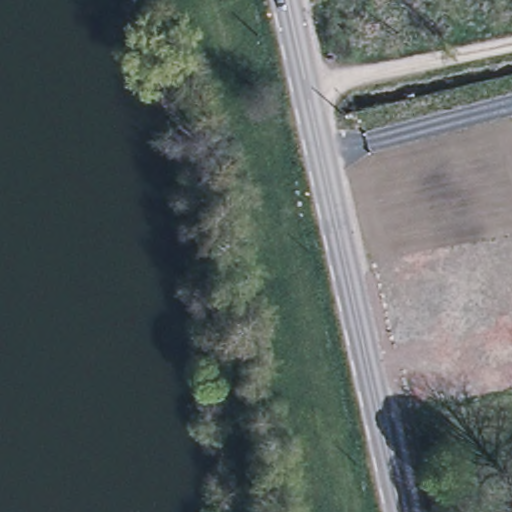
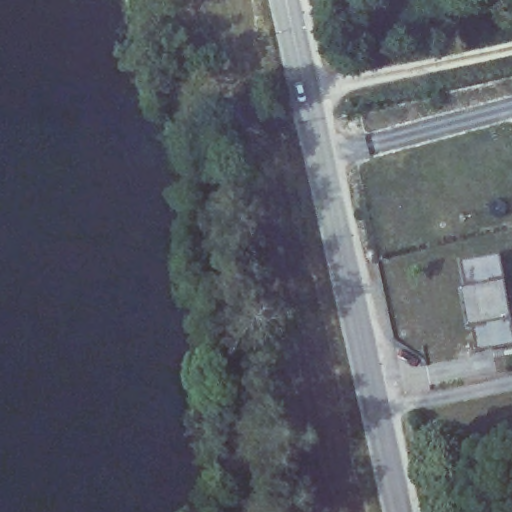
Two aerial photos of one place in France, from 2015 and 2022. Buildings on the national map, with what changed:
new [(512,346),(477,352),(473,327),(469,328),(462,288),(466,287),(461,260),(500,255),(512,320),(512,346)]

